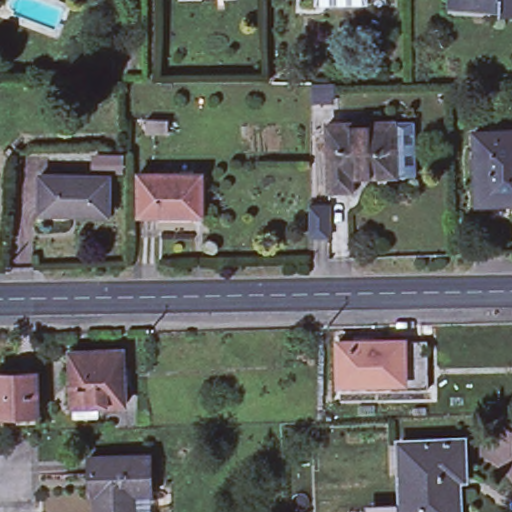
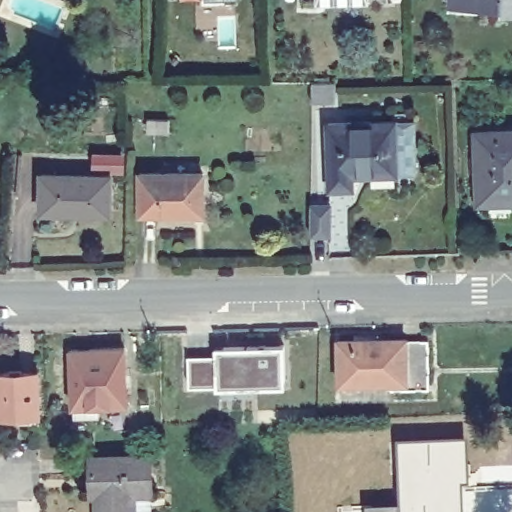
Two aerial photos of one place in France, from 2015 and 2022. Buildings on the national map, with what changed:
unchanged [(489,5),(454,4),(454,0),(512,0),(512,10),(489,10),(489,5)]
unchanged [(333,82),(333,102),(311,103),(311,83),(333,82)]
unchanged [(394,165),(369,165),(369,163),(350,163),(350,180),(327,180),(327,114),(394,113),(394,165)]
unchanged [(168,119),(168,132),(146,132),(146,120),(168,119)]
unchanged [(474,131),(512,130),(512,202),(476,204),(474,131)]
unchanged [(108,171),(108,209),(39,209),(39,170),(108,171)]
unchanged [(202,174),(202,215),(138,215),(138,174),(202,174)]
unchanged [(331,205),(330,236),(310,236),(310,205),(331,205)]
unchanged [(335,379),(334,336),(401,335),(401,338),(402,377),(387,378),(335,379)]
unchanged [(424,337),(424,386),(387,386),(387,378),(402,377),(401,338),(424,337)]
new [(226,354),(225,347),(284,346),(284,384),(252,384),(252,381),(218,381),(218,385),(189,386),(188,355),(226,354)]
unchanged [(70,351),(123,349),(125,405),(73,407),(70,351)]
unchanged [(38,415),(0,416),(0,372),(36,372),(38,415)]
unchanged [(464,480),(453,481),(454,512),(403,512),(400,445),(462,442),(464,480)]
unchanged [(90,468),(89,449),(150,448),(150,485),(151,512),(98,512),(98,468),(90,468)]

